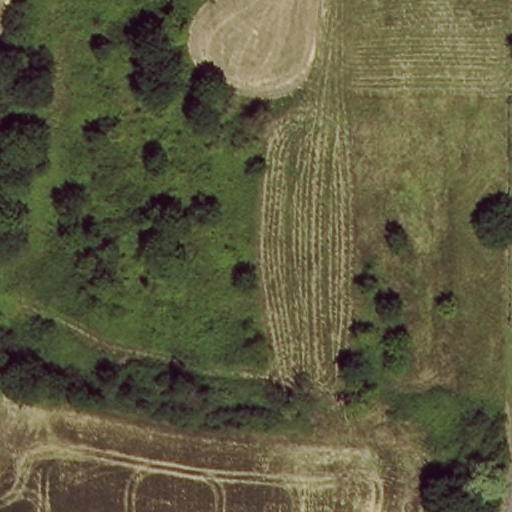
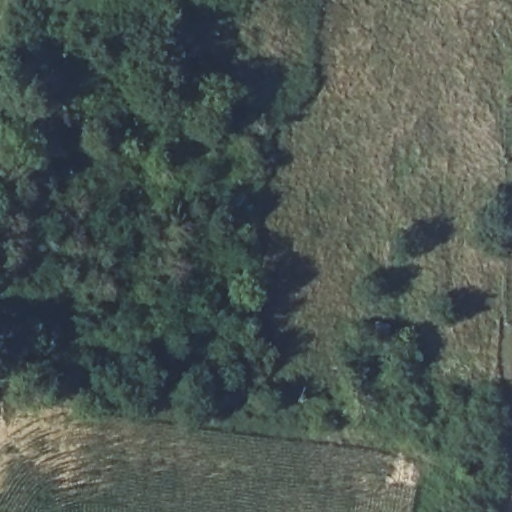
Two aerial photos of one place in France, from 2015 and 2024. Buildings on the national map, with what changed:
[]

